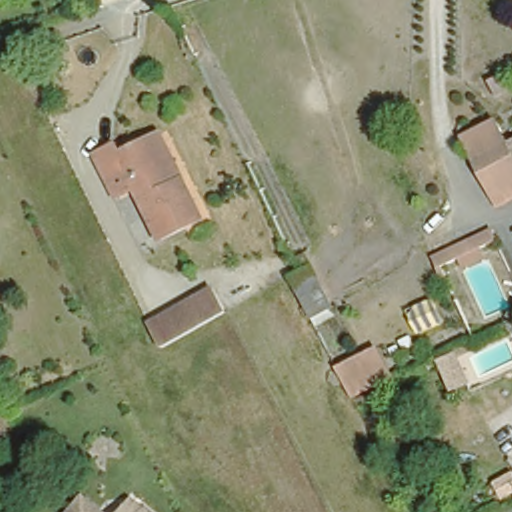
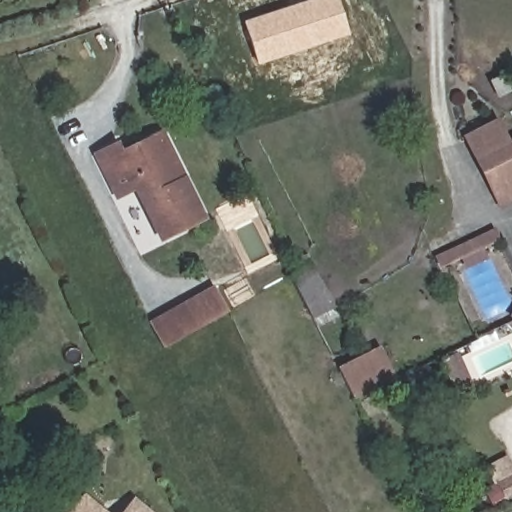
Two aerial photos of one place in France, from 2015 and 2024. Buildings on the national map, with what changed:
new [(337,0),(348,35),(256,64),(242,21),(309,0),(337,0)]
unchanged [(492,188),(463,133),(497,115),(501,123),(510,138),(512,137),(512,197),(500,203),(492,188)]
unchanged [(165,227),(142,179),(122,188),(102,142),(122,133),(127,144),(155,132),(166,126),(186,172),(203,210),(165,227)]
new [(492,231),(497,241),(481,248),(486,259),(467,268),(462,257),(442,266),(437,257),(492,231)]
unchanged [(301,265),(296,253),(305,249),(333,298),(312,314),(289,271),(301,265)]
unchanged [(214,287),(228,312),(185,335),(167,344),(154,320),(174,309),(214,287)]
unchanged [(341,362),(381,341),(397,369),(369,383),(357,390),(341,362)]
unchanged [(501,486),(512,479),(512,498),(509,499),(501,486)]
unchanged [(85,496),(86,497),(103,512),(72,512),(85,496)]
unchanged [(133,499),(149,512),(123,512),(133,499)]

